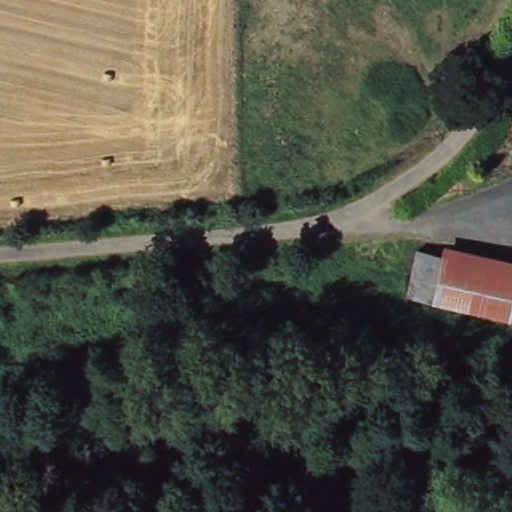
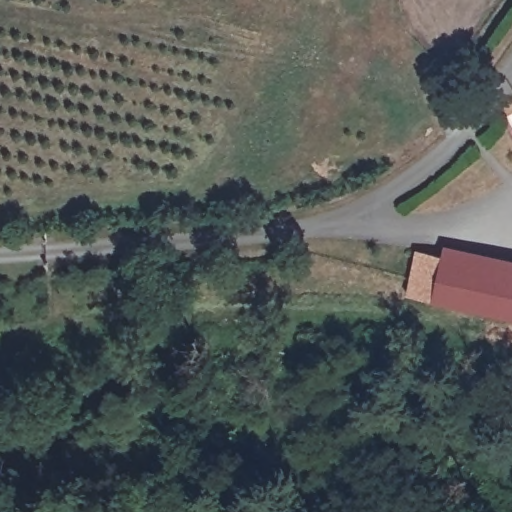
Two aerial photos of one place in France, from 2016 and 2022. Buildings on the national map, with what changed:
unchanged [(512,112),(512,127),(505,116),(512,112)]
unchanged [(406,294),(411,271),(416,250),(442,255),(433,299),(406,294)]
unchanged [(512,316),(433,299),(442,255),(512,269),(512,316)]
unchanged [(199,270),(201,292),(187,294),(185,272),(199,270)]

